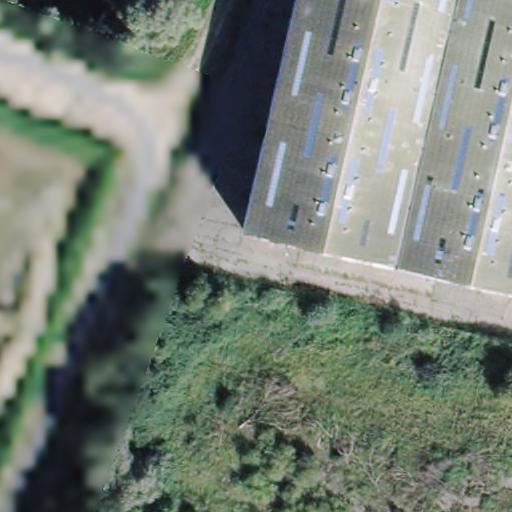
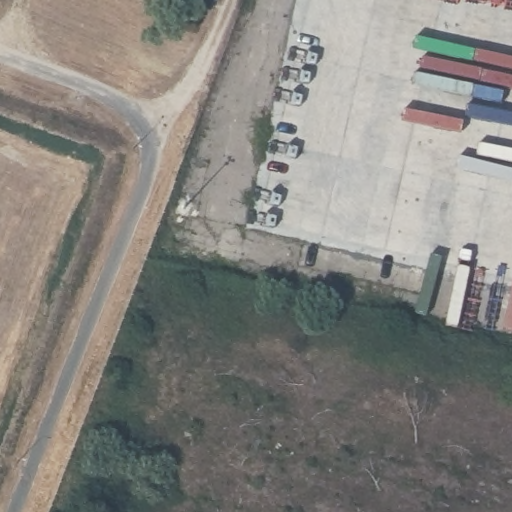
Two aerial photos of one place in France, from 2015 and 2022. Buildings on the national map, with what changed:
demolished [(296,0),(512,0),(512,287),(246,227),(296,0)]

